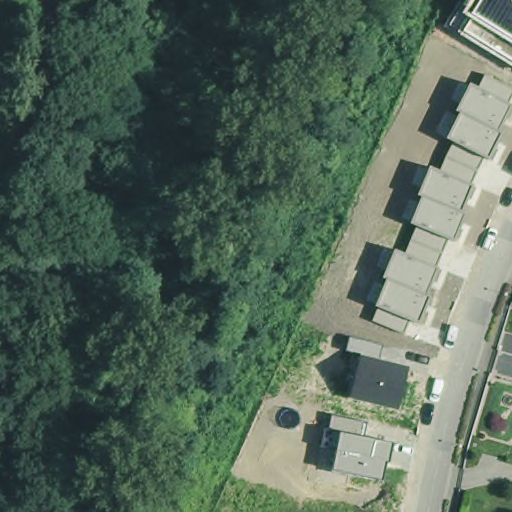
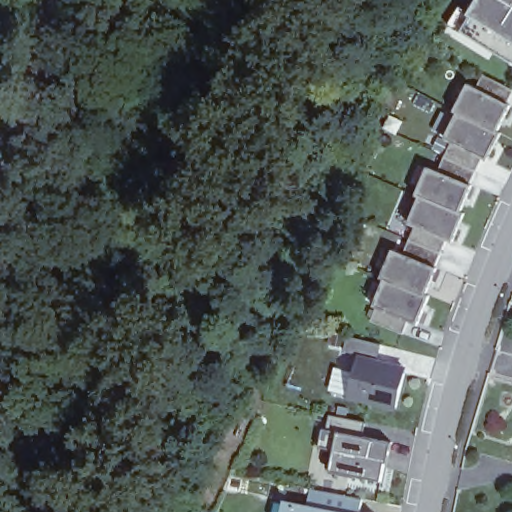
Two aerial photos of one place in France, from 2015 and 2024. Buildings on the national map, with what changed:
unchanged [(469,16),(461,12),(468,0),(512,0),(512,64),(460,33),(469,16)]
unchanged [(378,308),(389,280),(382,277),(393,250),(406,255),(417,226),(410,223),(421,197),(416,194),(427,167),(440,172),(453,143),(448,139),(462,112),(456,110),(468,85),(479,89),(485,75),(512,89),(512,101),(510,104),(495,130),(499,132),(487,158),(481,156),(470,185),(459,211),(465,213),(453,242),(445,239),(433,267),(423,294),(428,296),(418,323),(410,319),(405,334),(371,322),(378,308)]
unchanged [(350,397),(361,354),(346,350),(350,335),(382,344),(378,359),(408,367),(398,408),(350,397)]
unchanged [(331,469),(338,433),(326,430),(330,414),(366,423),(362,437),(390,443),(382,481),(331,469)]
new [(312,506),(315,491),(364,501),(362,512),(285,512),(287,501),(312,506)]

